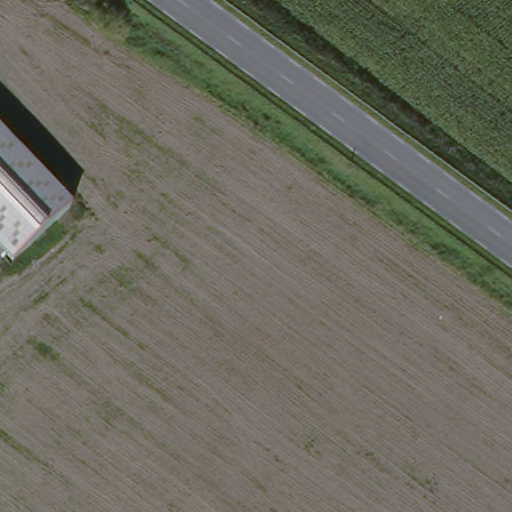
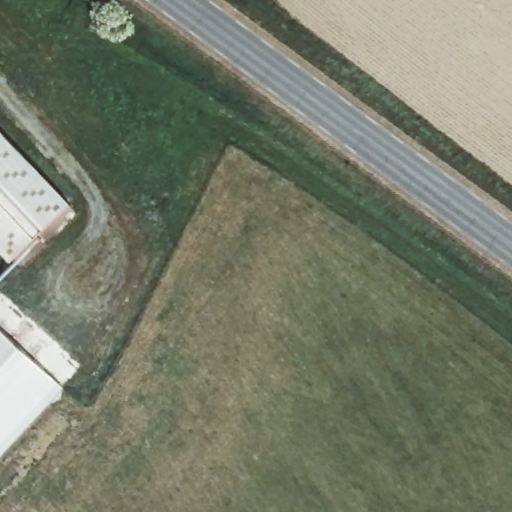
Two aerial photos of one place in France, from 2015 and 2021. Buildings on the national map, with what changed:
unchanged [(65,205),(11,258),(0,247),(0,138),(65,205)]
new [(64,388),(0,457),(0,329),(64,388)]

